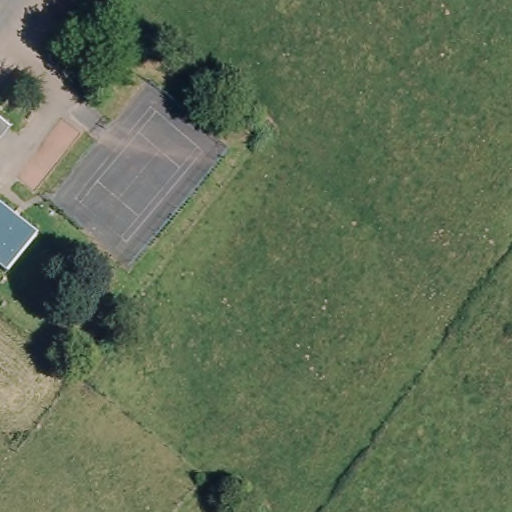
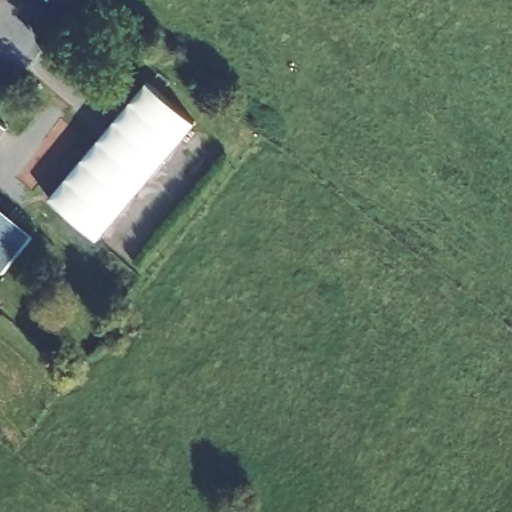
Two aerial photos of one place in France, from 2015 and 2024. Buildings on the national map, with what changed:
new [(50,199),(148,82),(196,122),(98,239),(50,199)]
unchanged [(0,135),(0,121),(7,126),(0,135)]
unchanged [(0,210),(32,236),(4,271),(0,268),(0,210)]

